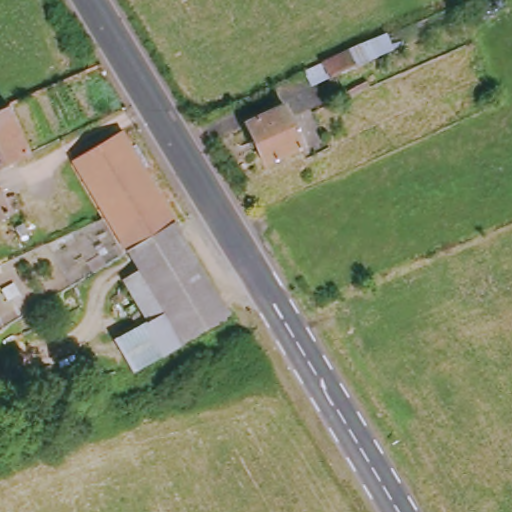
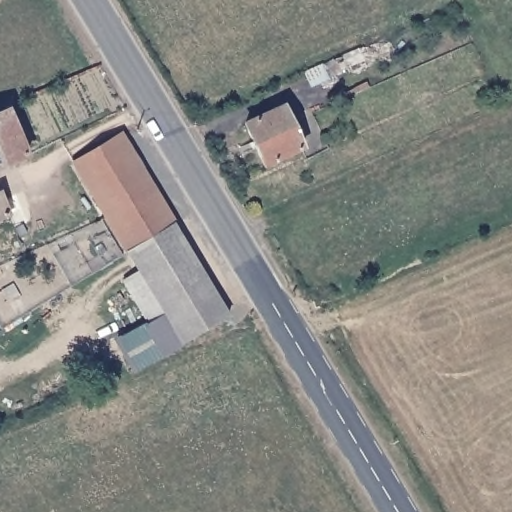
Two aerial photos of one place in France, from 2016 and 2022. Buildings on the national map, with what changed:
unchanged [(393,27),(399,38),(334,69),(331,65),(314,72),(312,63),(393,27)]
unchanged [(295,150),(259,167),(241,125),(279,108),(295,150)]
unchanged [(0,168),(0,110),(21,159),(0,168)]
unchanged [(168,221),(166,218),(118,247),(68,163),(131,126),(182,212),(168,221)]
unchanged [(0,219),(0,210),(3,217),(0,219)]
unchanged [(221,314),(176,342),(118,247),(166,218),(168,221),(221,314)]

